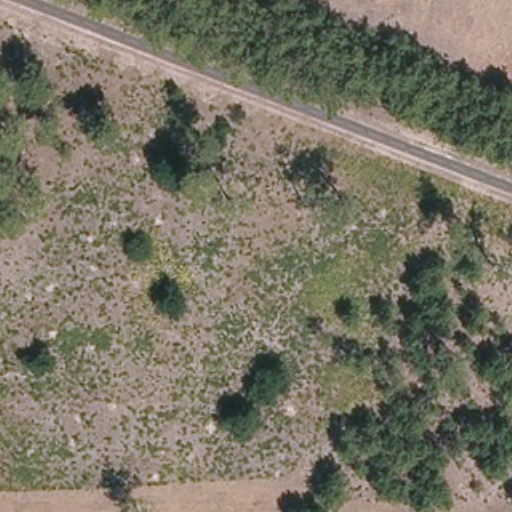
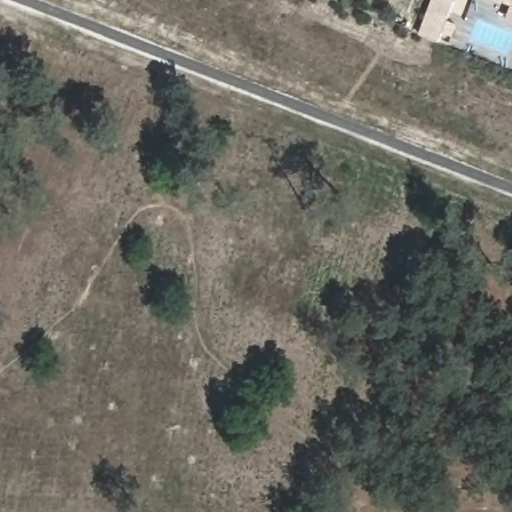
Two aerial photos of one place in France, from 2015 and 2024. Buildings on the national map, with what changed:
new [(454,0),(456,1),(439,46),(422,39),(437,0),(454,0)]
new [(498,0),(512,0),(512,5),(498,0)]
new [(510,19),(512,15),(512,19),(510,19)]

